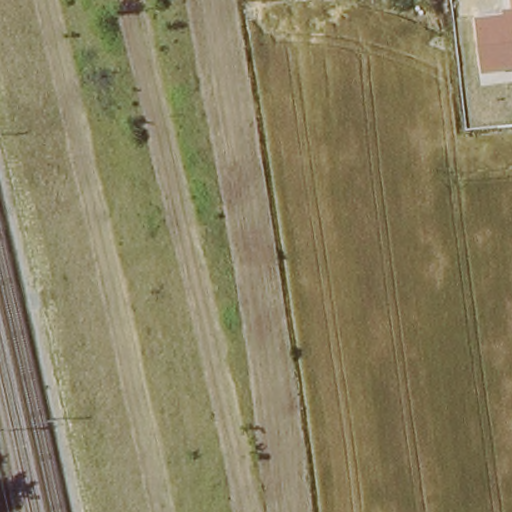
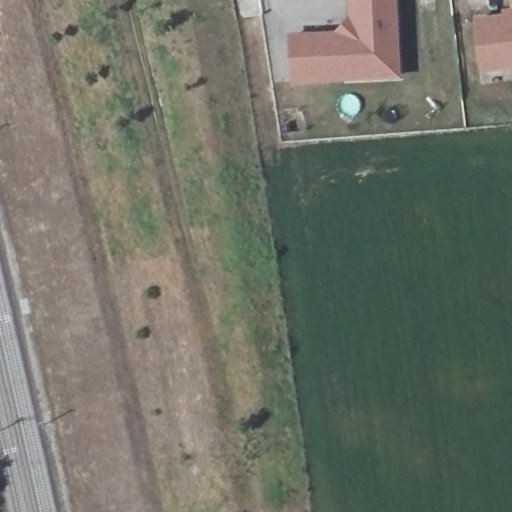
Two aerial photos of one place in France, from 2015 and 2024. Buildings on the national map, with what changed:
new [(364,79),(292,83),(290,39),(345,36),(358,22),(357,0),(394,0),(397,59),(398,78),(364,79)]

